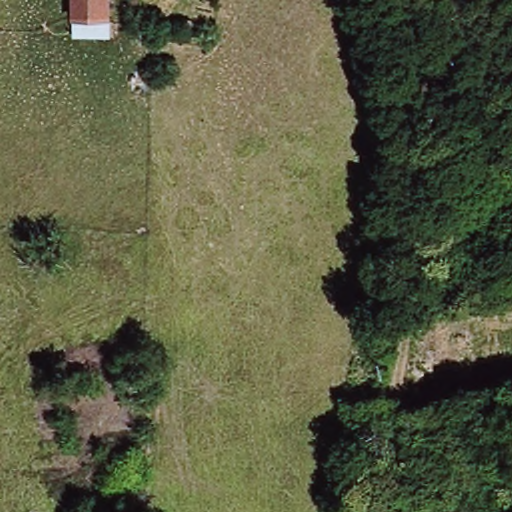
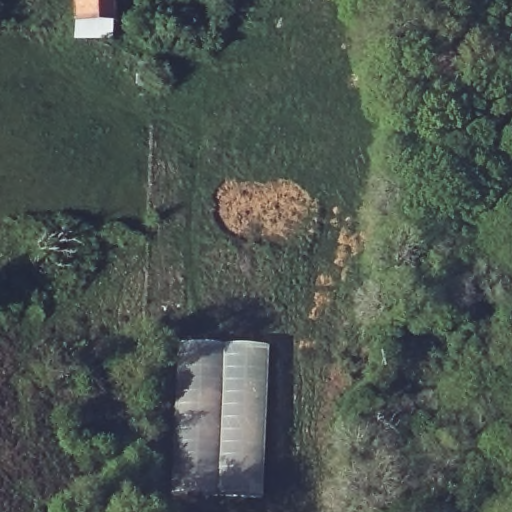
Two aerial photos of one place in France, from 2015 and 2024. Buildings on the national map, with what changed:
unchanged [(71,0),(103,0),(103,17),(104,38),(71,38),(71,18),(71,0)]
new [(177,342),(269,347),(262,498),(170,495),(177,342)]

